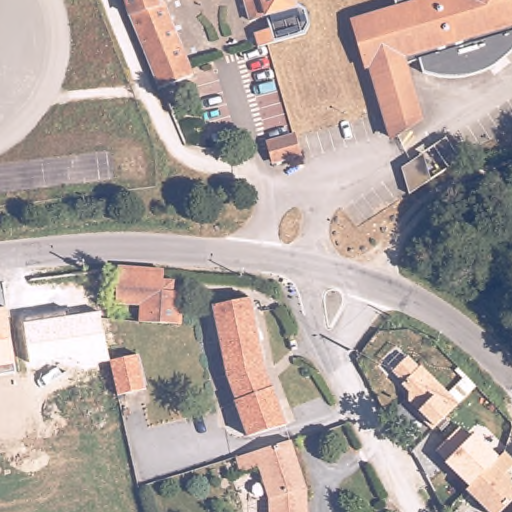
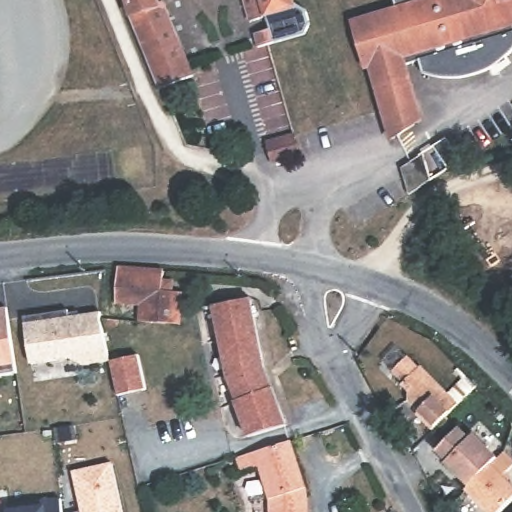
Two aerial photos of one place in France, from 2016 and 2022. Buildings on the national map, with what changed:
unchanged [(170,1),(199,71),(166,84),(134,11),(131,0),(161,0),(162,4),(170,1)]
unchanged [(279,40),(275,28),(269,11),(262,14),(251,17),(246,0),(299,0),(299,1),(298,2),(308,7),(310,22),(311,25),(307,30),(279,40)]
unchanged [(505,64),(498,69),(487,75),(479,79),(473,80),(466,81),(459,82),(452,82),(444,81),(437,80),(430,77),(424,75),(420,62),(406,66),(424,124),(397,140),(376,71),(372,72),(359,29),(400,15),(396,0),(512,0),(512,57),(511,58),(505,64)]
unchanged [(293,137),(299,159),(276,167),(274,168),(267,147),(293,137)]
unchanged [(427,167),(434,189),(428,192),(415,200),(407,179),(427,167)]
unchanged [(137,302),(116,301),(117,266),(165,270),(165,290),(180,290),(180,302),(180,321),(136,319),(137,302)]
unchanged [(220,324),(217,306),(216,303),(253,296),(256,310),(266,364),(287,429),(248,433),(238,400),(225,403),(221,389),(231,385),(220,324)]
unchanged [(7,307),(13,364),(0,366),(0,308),(7,307)]
unchanged [(102,311),(110,361),(76,366),(76,358),(30,364),(25,322),(102,311)]
unchanged [(419,368),(422,366),(449,393),(462,378),(456,370),(459,366),(478,385),(436,428),(409,402),(409,395),(401,385),(403,382),(381,360),(397,344),(419,368)]
unchanged [(115,393),(110,361),(138,355),(146,388),(115,393)]
unchanged [(468,487),(446,463),(437,451),(460,428),(469,438),(474,432),(497,456),(468,487)]
unchanged [(273,509),(258,455),(291,446),(309,494),(310,512),(274,512),(273,509)]
unchanged [(512,468),(506,473),(512,479),(512,481),(512,503),(502,512),(488,512),(465,490),(504,450),(512,456),(512,468)]
new [(110,460),(122,512),(90,512),(88,505),(80,506),(71,468),(110,460)]
new [(6,509),(5,502),(58,496),(60,512),(0,512),(0,510),(6,509)]

